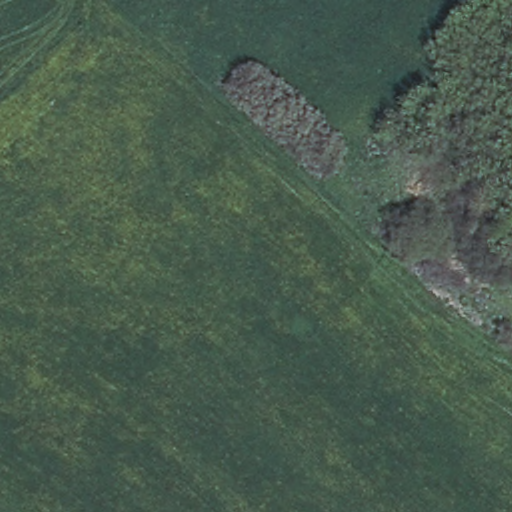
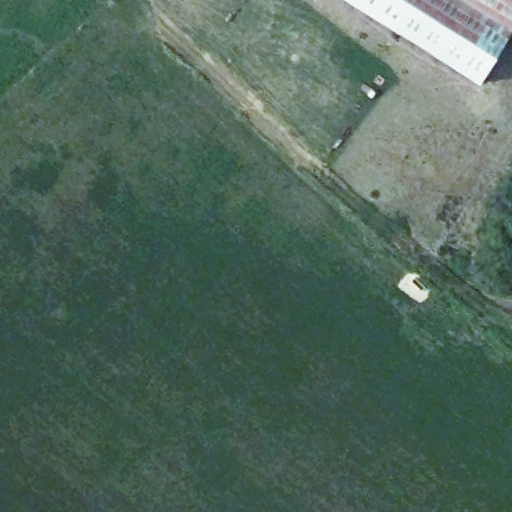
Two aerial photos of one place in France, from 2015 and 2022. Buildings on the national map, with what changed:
new [(487,82),(354,0),(512,0),(512,42),(487,82)]

